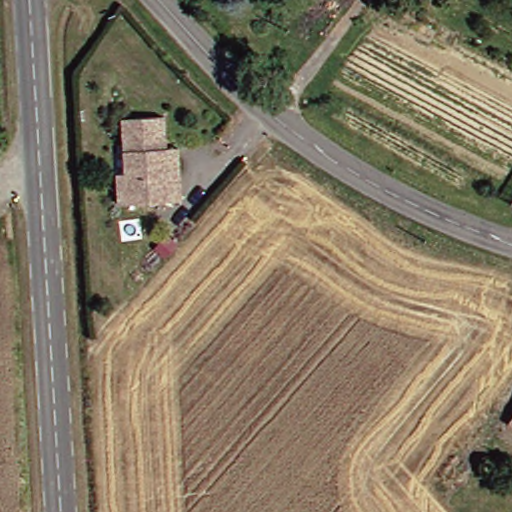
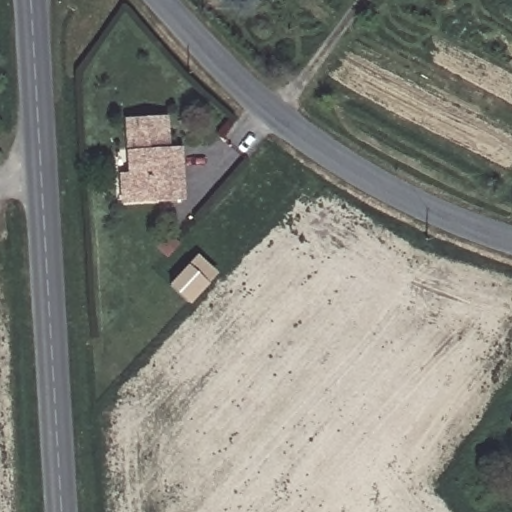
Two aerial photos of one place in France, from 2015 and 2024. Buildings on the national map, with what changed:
unchanged [(181,182),(183,205),(121,208),(120,178),(129,178),(125,123),(165,121),(167,153),(180,152),(181,182)]
new [(197,258),(215,274),(195,296),(177,280),(197,258)]

